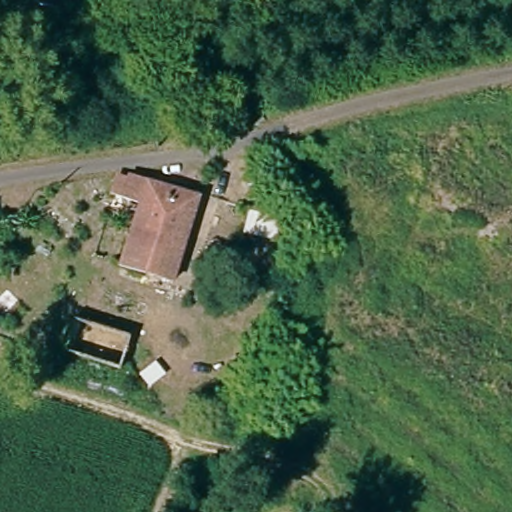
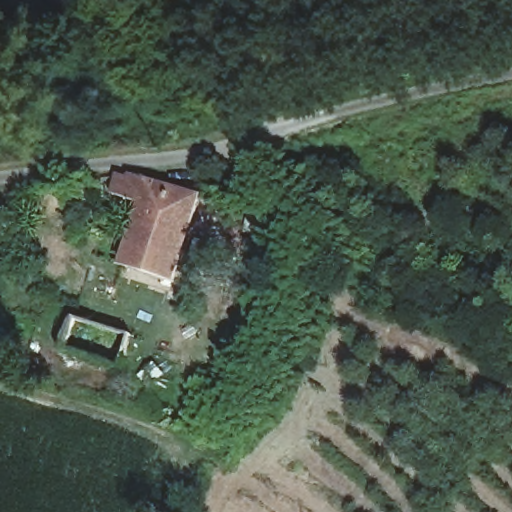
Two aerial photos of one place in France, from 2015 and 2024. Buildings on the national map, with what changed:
unchanged [(200,199),(177,284),(118,268),(134,206),(112,199),(118,175),(200,199)]

